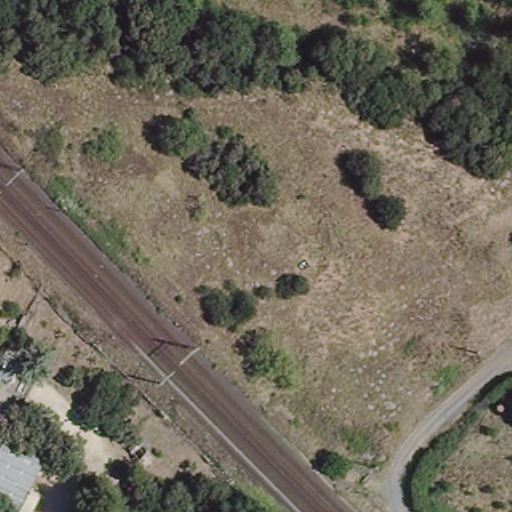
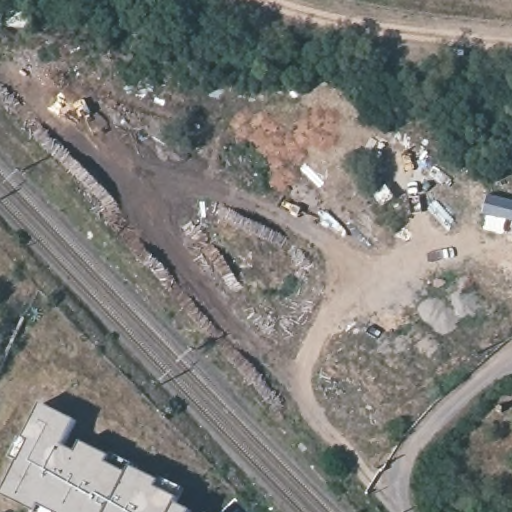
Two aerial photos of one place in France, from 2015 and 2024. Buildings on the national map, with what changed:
new [(4,496),(31,441),(25,438),(43,403),(77,420),(64,447),(78,453),(82,443),(110,457),(106,465),(130,475),(132,469),(158,481),(156,487),(179,497),(176,505),(191,511),(190,512),(37,512),(4,496)]
demolished [(0,504),(0,446),(4,438),(44,458),(18,512),(0,504)]
demolished [(32,512),(20,512),(31,490),(40,495),(32,512)]

